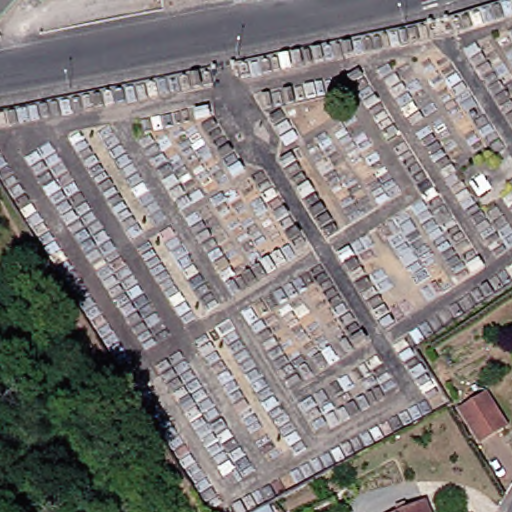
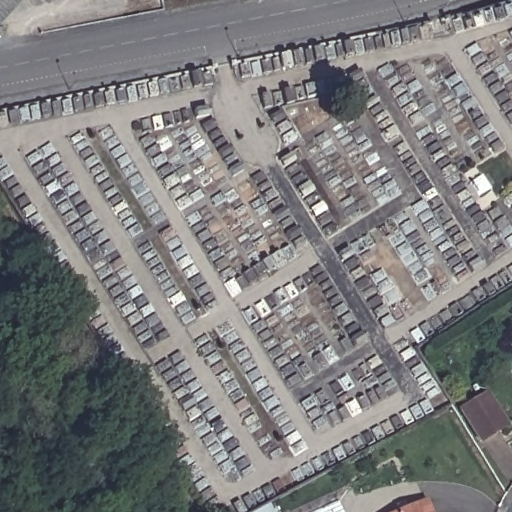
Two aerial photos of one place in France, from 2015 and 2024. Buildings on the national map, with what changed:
unchanged [(0,17),(0,0),(17,0),(0,17)]
unchanged [(39,2),(35,0),(41,0),(39,2)]
unchanged [(510,426),(485,441),(467,410),(490,395),(510,426)]
unchanged [(397,512),(401,510),(429,499),(433,512),(397,512)]

